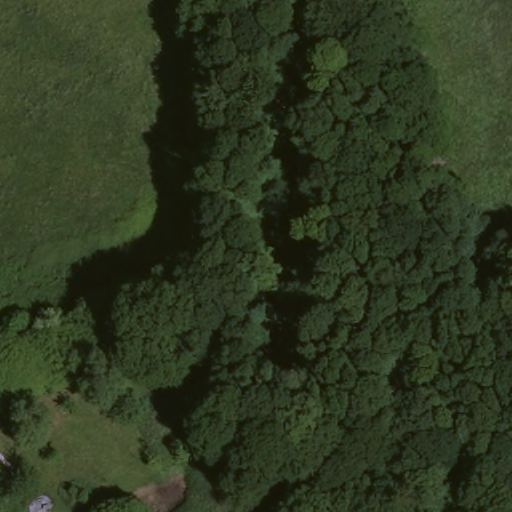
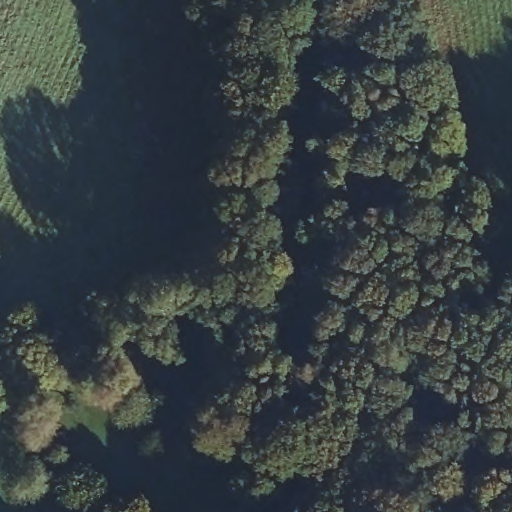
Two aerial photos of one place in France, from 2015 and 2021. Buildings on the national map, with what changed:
[]

